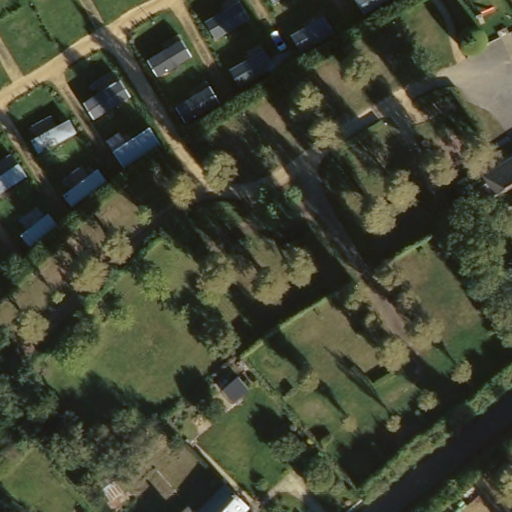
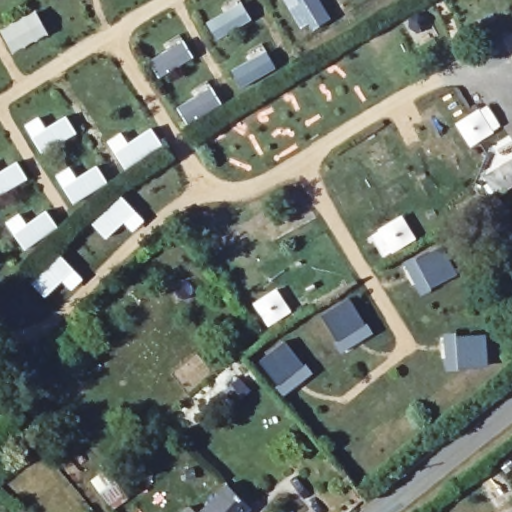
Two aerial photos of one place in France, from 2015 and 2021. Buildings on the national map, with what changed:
unchanged [(480,184),(512,165),(512,188),(489,202),(480,184)]
unchanged [(479,198),(483,205),(465,217),(460,209),(479,198)]
new [(458,274),(432,287),(415,294),(399,261),(413,255),(415,259),(441,244),(458,274)]
new [(364,324),(367,322),(373,334),(340,353),(333,343),(336,340),(321,314),(350,298),(364,324)]
new [(487,366),(458,367),(459,369),(444,369),(443,334),(455,332),(455,334),(485,332),(487,366)]
new [(303,364),(305,363),(313,373),(282,397),(274,387),(277,385),(259,360),(284,340),(303,364)]
unchanged [(199,508),(228,478),(251,499),(239,512),(203,512),(200,509),(199,508)]
unchanged [(200,509),(203,512),(197,512),(200,509)]

